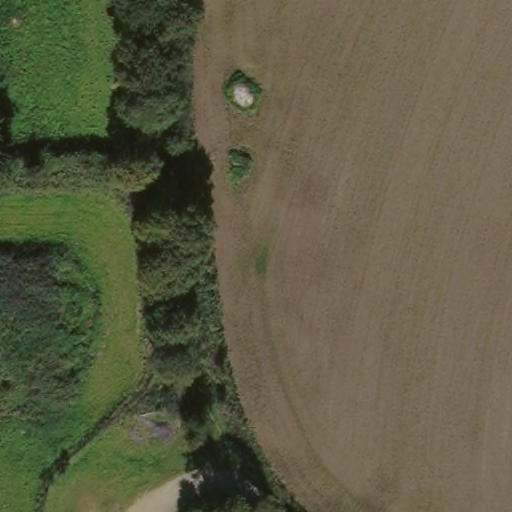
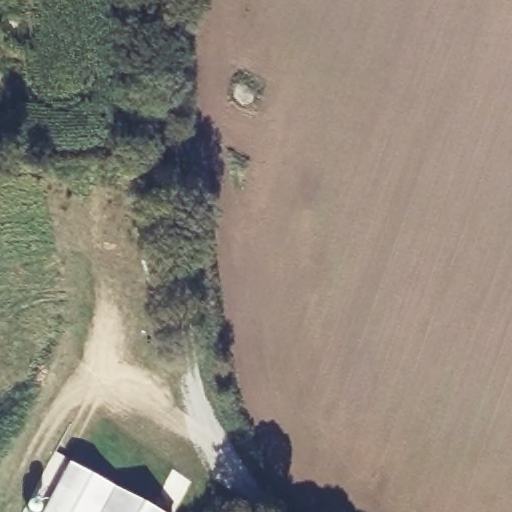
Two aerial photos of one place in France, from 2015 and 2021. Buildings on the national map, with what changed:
new [(162,512),(42,512),(69,462),(162,512)]

